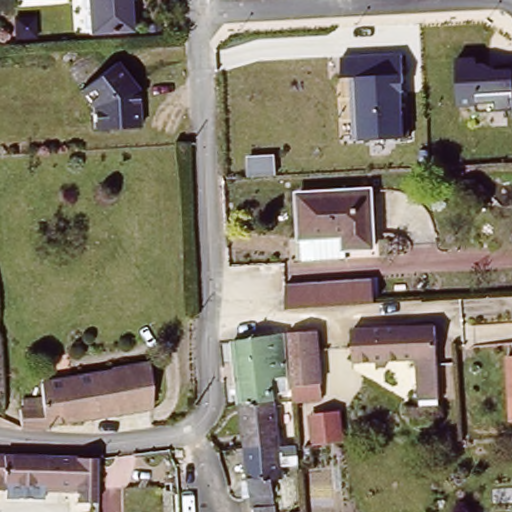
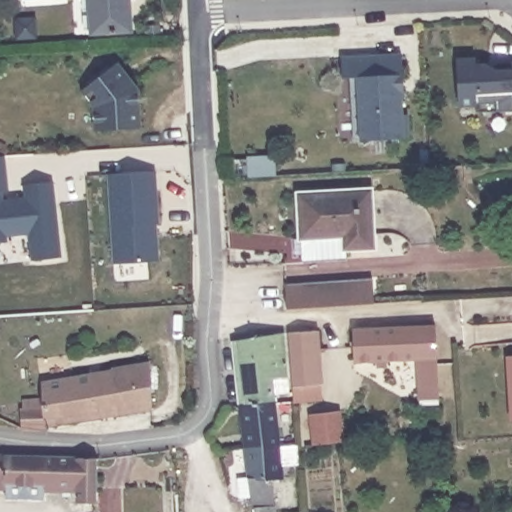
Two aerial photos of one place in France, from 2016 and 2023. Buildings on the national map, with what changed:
unchanged [(93,33),(90,0),(132,0),(134,29),(93,33)]
unchanged [(354,76),(335,77),(334,53),(399,50),(401,74),(404,139),(358,140),(354,76)]
unchanged [(477,61),(512,61),(512,109),(476,112),(476,105),(459,106),(456,57),(476,55),(477,61)]
unchanged [(143,86),(146,123),(101,126),(100,105),(88,89),(123,61),(143,86)]
new [(5,157),(9,191),(4,192),(4,200),(27,198),(26,186),(54,183),(63,258),(34,261),(31,234),(9,237),(9,243),(0,244),(0,157),(5,157)]
new [(158,223),(156,224),(158,260),(114,262),(108,174),(156,171),(158,223)]
unchanged [(371,250),(342,251),(339,231),(299,232),(296,198),(368,192),(371,250)]
unchanged [(283,283),(312,281),(351,279),(371,278),(372,303),(352,304),(314,307),(284,308),(283,283)]
unchanged [(423,389),(421,362),(356,365),(354,333),(419,331),(435,330),(436,339),(439,388),(440,399),(424,400),(423,389)]
unchanged [(324,401),(295,402),(291,354),(294,354),(292,335),(319,334),(323,387),(324,401)]
unchanged [(276,396),(276,405),(243,409),(237,345),(286,339),(289,380),(291,395),(276,396)]
unchanged [(506,357),(512,357),(512,421),(509,421),(506,357)]
unchanged [(15,408),(20,407),(19,399),(39,395),(38,383),(100,372),(143,363),(148,409),(42,425),(42,430),(18,429),(15,408)]
unchanged [(276,405),(280,450),(246,452),(241,409),(243,409),(276,405)]
new [(341,410),(344,440),(314,442),(311,412),(341,410)]
demolished [(319,448),(304,449),(302,422),(318,420),(319,448)]
unchanged [(301,469),(284,469),(284,483),(275,484),(276,507),(271,507),(272,512),(258,512),(258,507),(256,507),(255,502),(244,503),(242,485),(249,484),(246,452),(280,450),(299,449),(301,469)]
unchanged [(43,487),(4,486),(4,490),(0,490),(0,457),(41,457),(43,487)]
unchanged [(95,512),(78,512),(76,488),(43,488),(43,487),(41,457),(93,457),(95,512)]

